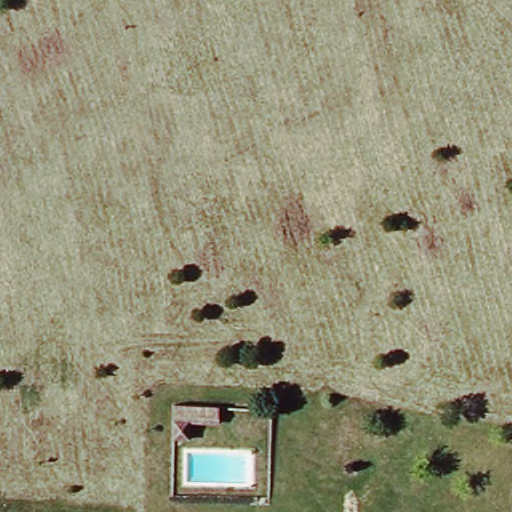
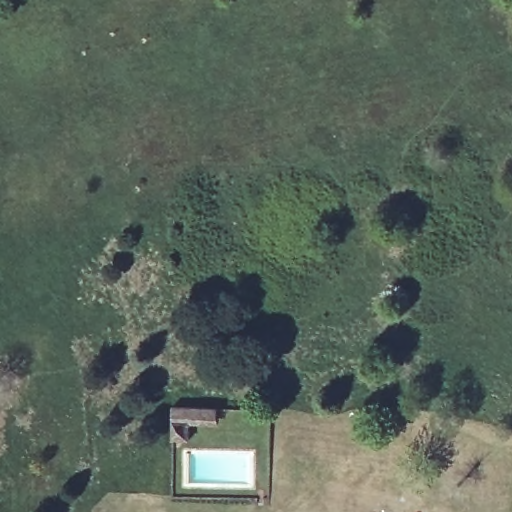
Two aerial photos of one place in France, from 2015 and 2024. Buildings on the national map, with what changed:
unchanged [(191,438),(175,438),(176,420),(192,420),(191,438)]

